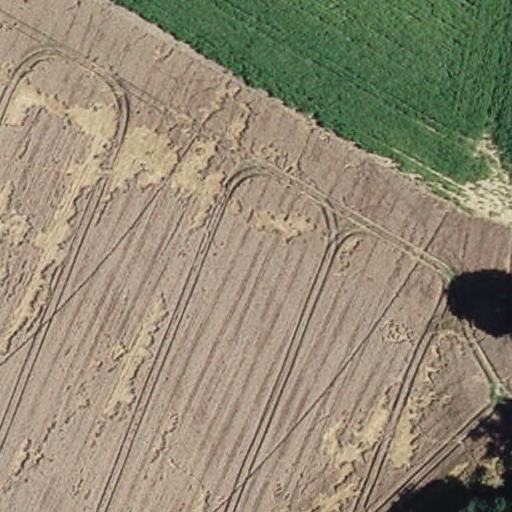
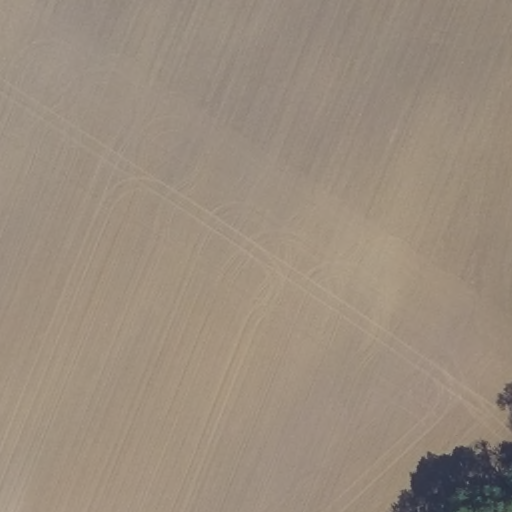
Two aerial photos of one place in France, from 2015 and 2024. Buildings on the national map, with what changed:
[]

